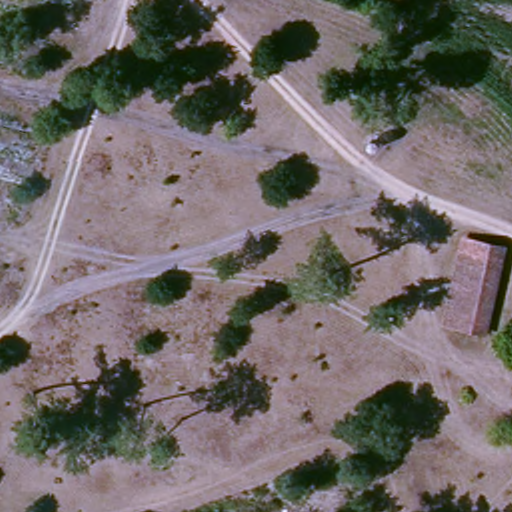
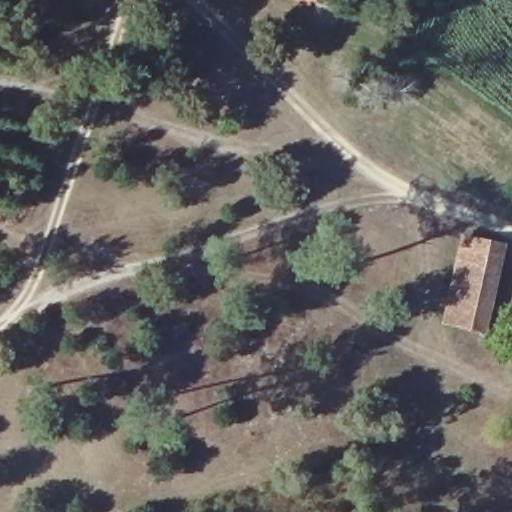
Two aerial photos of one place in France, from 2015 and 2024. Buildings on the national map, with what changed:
unchanged [(504,244),(481,332),(454,325),(471,238),(504,244)]

